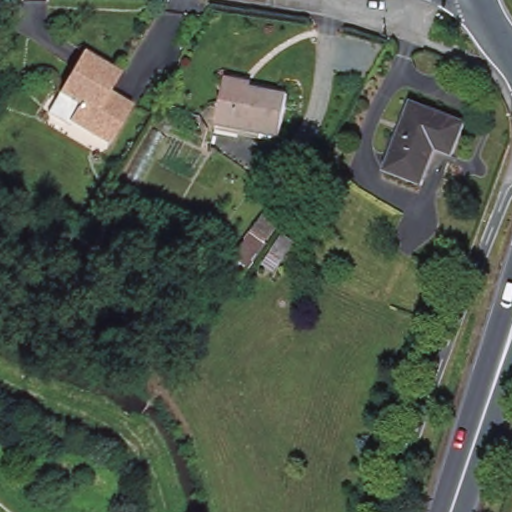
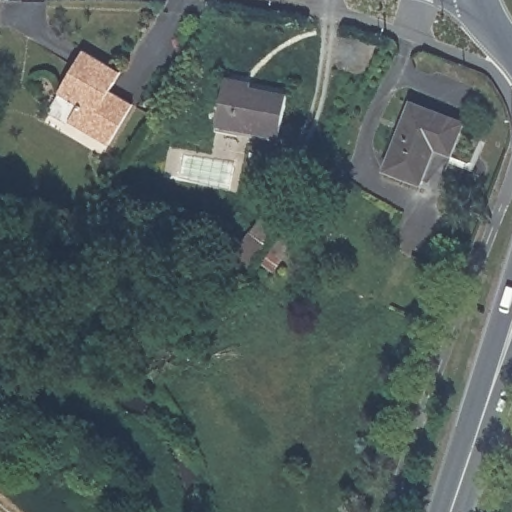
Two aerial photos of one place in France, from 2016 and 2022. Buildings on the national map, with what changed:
unchanged [(111,145),(73,121),(71,124),(51,113),(61,94),(60,93),(86,51),(125,75),(114,95),(133,107),(111,145)]
unchanged [(282,138),(218,122),(228,77),(250,81),(249,88),(290,99),(282,138)]
unchanged [(457,156),(439,151),(425,187),(388,175),(414,105),(467,124),(457,156)]
unchanged [(252,272),(237,260),(258,235),(272,247),(252,272)]
unchanged [(289,266),(279,257),(291,242),(301,251),(289,266)]

